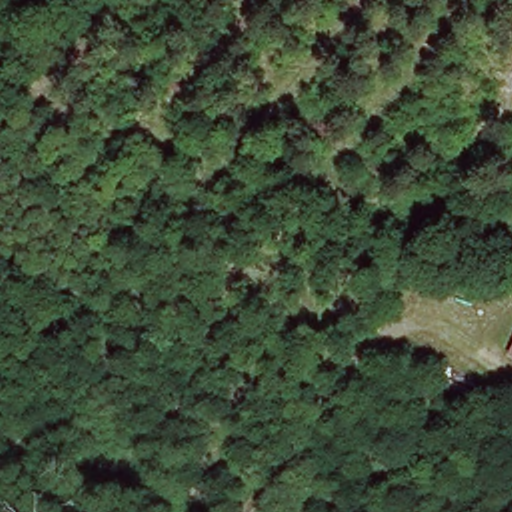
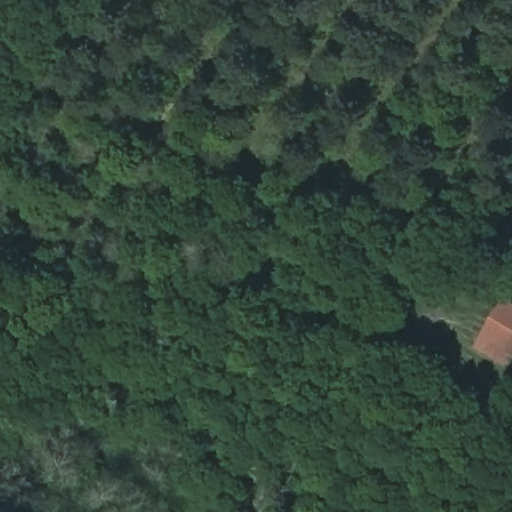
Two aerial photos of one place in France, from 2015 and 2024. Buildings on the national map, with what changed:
unchanged [(494,273),(487,286),(460,272),(467,258),(494,273)]
new [(473,346),(500,299),(512,307),(512,352),(505,366),(473,346)]
demolished [(512,354),(512,357),(511,356),(512,354)]

